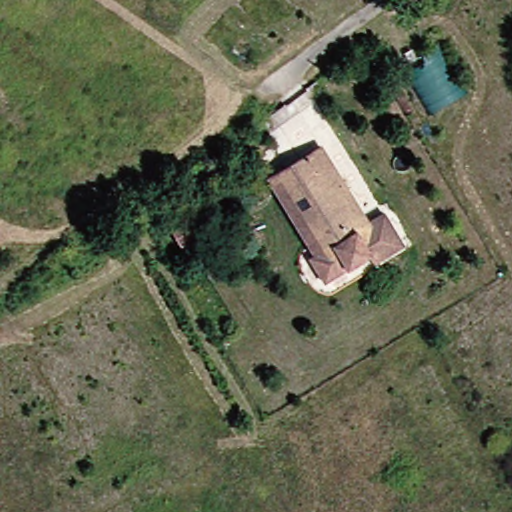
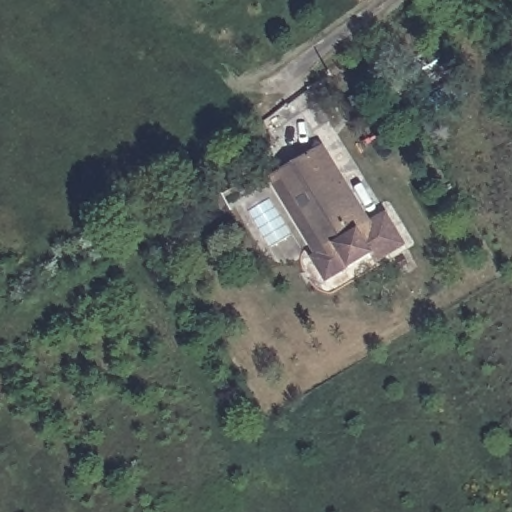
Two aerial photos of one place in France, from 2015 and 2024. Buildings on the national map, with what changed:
unchanged [(358,222),(378,212),(397,247),(364,264),(360,257),(312,282),(298,256),(305,252),(263,177),(271,172),(316,149),(358,222)]

